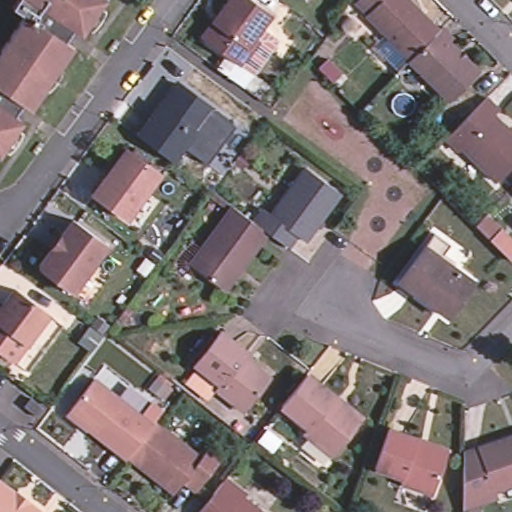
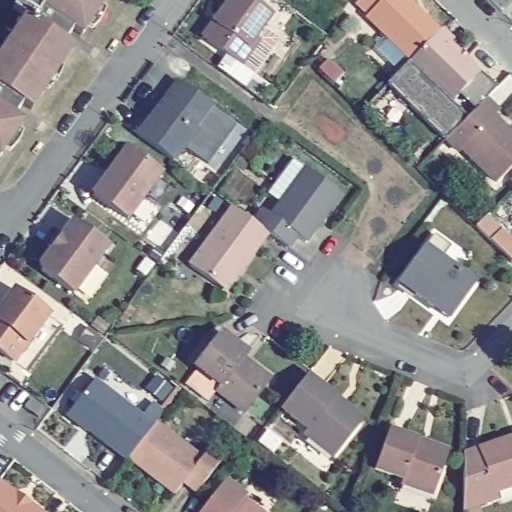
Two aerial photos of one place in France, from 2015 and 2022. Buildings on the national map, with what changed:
unchanged [(2,50),(22,20),(10,12),(18,0),(101,0),(105,2),(80,39),(71,34),(63,45),(72,51),(59,70),(53,67),(45,79),(2,50)]
unchanged [(201,39),(212,24),(215,25),(220,18),(213,13),(223,0),(247,0),(265,13),(255,27),(273,39),(249,74),(240,87),(222,74),(232,62),(201,39)]
unchanged [(305,1),(304,0),(305,0),(305,1)]
unchanged [(410,67),(365,23),(367,21),(357,11),(368,0),(402,0),(440,37),(410,67)]
unchanged [(442,34),(455,46),(450,50),(480,80),(449,111),(407,70),(410,67),(440,37),(442,34)]
unchanged [(42,96),(30,114),(20,107),(12,119),(22,126),(0,157),(0,53),(2,50),(45,79),(37,91),(42,96)]
unchanged [(175,165),(140,141),(163,110),(180,87),(182,89),(212,112),(175,165)]
unchanged [(499,115),(493,121),(512,139),(512,169),(497,185),(463,151),(460,154),(447,141),(486,101),(499,115)]
unchanged [(160,179),(127,225),(92,199),(125,153),(160,179)]
unchanged [(189,267),(222,222),(232,209),(251,224),(260,212),(269,217),(304,171),(340,197),(305,244),(297,239),(288,251),(275,242),(267,236),(258,248),(225,293),(189,267)]
unchanged [(511,260),(490,239),(478,228),(490,217),(500,228),(512,239),(512,259),(511,260)]
unchanged [(107,251),(71,299),(38,276),(38,268),(48,256),(56,254),(65,243),(61,239),(72,225),(107,251)]
unchanged [(416,258),(422,250),(431,239),(447,251),(439,262),(472,287),(446,324),(405,293),(395,287),(416,258)]
unchanged [(15,364),(0,353),(0,317),(18,293),(50,317),(15,364)]
unchanged [(247,355),(243,359),(270,381),(243,415),(217,393),(220,389),(193,368),(221,333),(247,355)]
unchanged [(324,388),(320,392),(363,427),(337,460),(308,437),(312,431),(285,410),(305,385),(310,377),(324,388)]
unchanged [(125,467),(91,441),(93,437),(68,419),(93,388),(151,433),(126,466),(125,467)]
unchanged [(48,412),(42,419),(28,408),(34,401),(48,412)]
unchanged [(152,431),(200,467),(207,458),(220,468),(192,503),(179,492),(172,502),(126,466),(151,433),(152,431)]
unchanged [(416,441),(414,447),(447,458),(432,497),(398,486),(400,482),(372,471),(387,431),(416,441)]
unchanged [(490,491),(477,451),(510,441),(512,446),(512,445),(512,484),(490,491)]
unchanged [(492,498),(462,508),(462,455),(477,451),(490,491),(492,498)]
unchanged [(247,502),(259,512),(205,512),(230,481),(248,496),(247,502)]
unchanged [(17,504),(25,509),(30,507),(35,512),(0,512),(0,486),(17,498),(17,504)]

